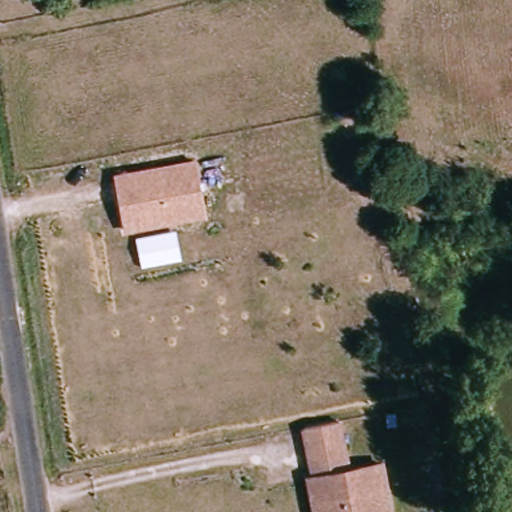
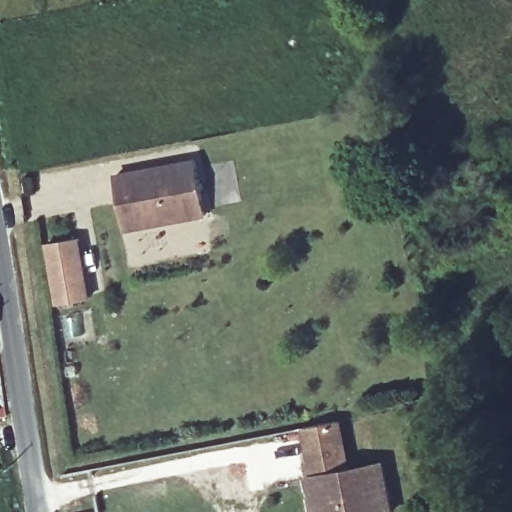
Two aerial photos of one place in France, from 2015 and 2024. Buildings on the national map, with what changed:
unchanged [(126,232),(114,174),(196,158),(208,216),(126,232)]
new [(78,236),(89,295),(57,301),(47,242),(78,236)]
unchanged [(355,470),(383,463),(391,512),(310,512),(303,479),(311,477),(302,430),(339,424),(355,470)]

